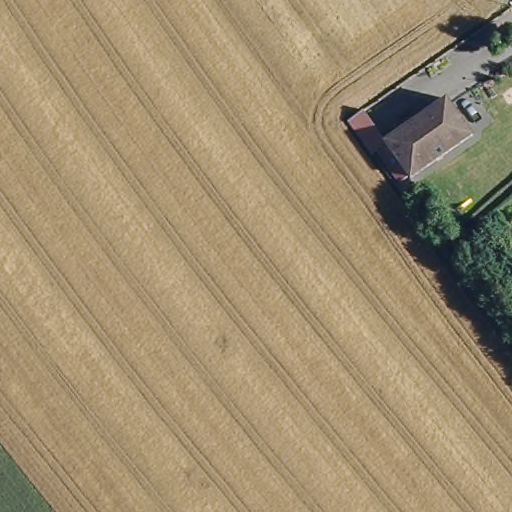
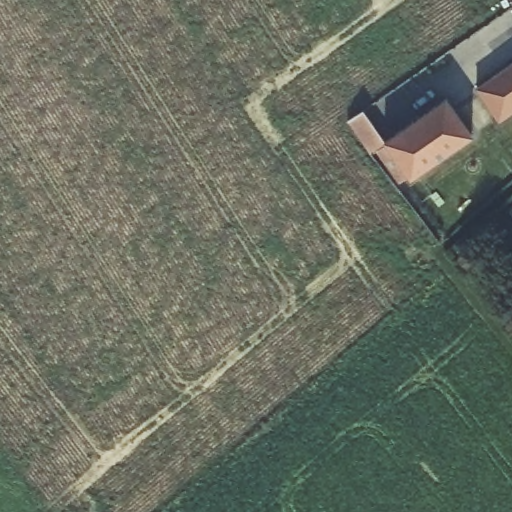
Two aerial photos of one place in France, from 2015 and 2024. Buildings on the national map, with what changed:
new [(475,88),(512,63),(512,113),(499,122),(475,88)]
unchanged [(474,131),(452,147),(424,167),(396,188),(395,188),(369,154),(368,153),(352,134),(352,133),(344,123),(345,123),(360,111),(360,110),(382,143),(449,97),(454,104),(469,125),(474,131)]

